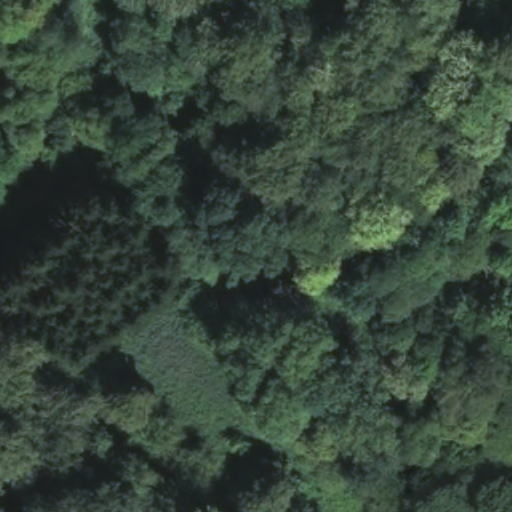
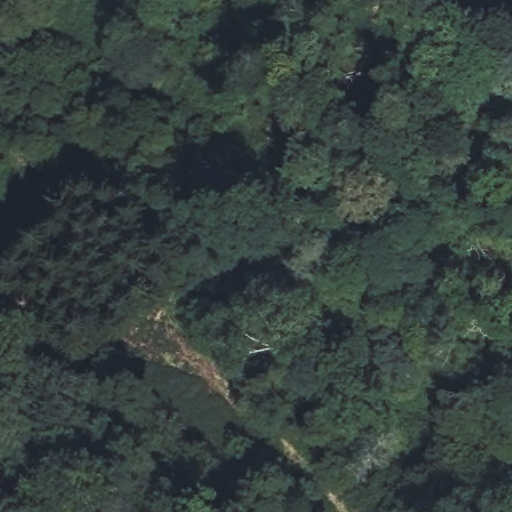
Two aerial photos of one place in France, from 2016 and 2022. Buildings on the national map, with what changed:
[]

